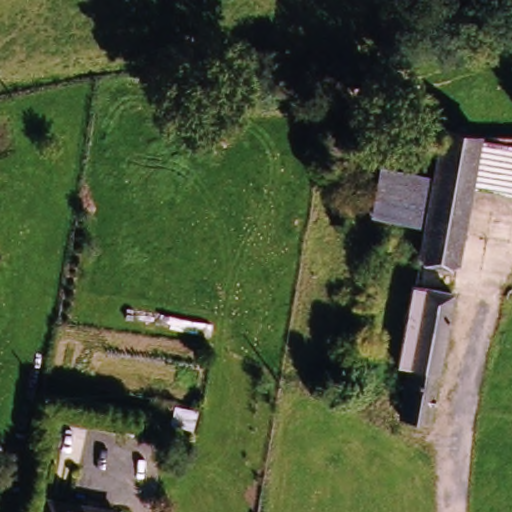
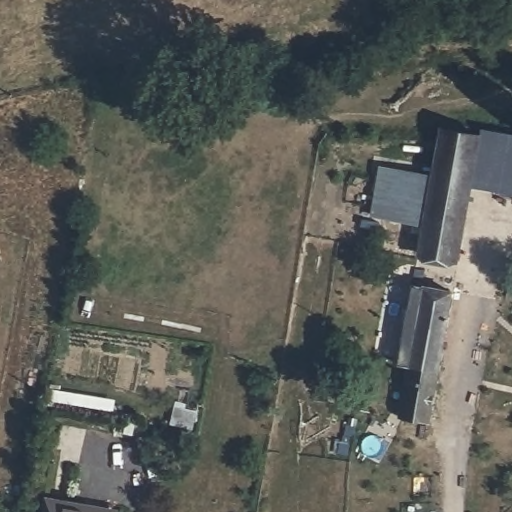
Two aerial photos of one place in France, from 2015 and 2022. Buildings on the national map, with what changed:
unchanged [(476,131),(480,131),(470,185),(456,258),(434,253),(419,250),(423,225),(434,172),(442,132),(444,125),(476,131)]
unchanged [(480,131),(512,138),(512,191),(470,185),(480,131)]
unchanged [(434,172),(423,225),(370,217),(378,162),(434,172)]
unchanged [(403,411),(427,280),(456,285),(430,416),(403,411)]
unchanged [(68,512),(70,505),(107,512),(68,512)]

